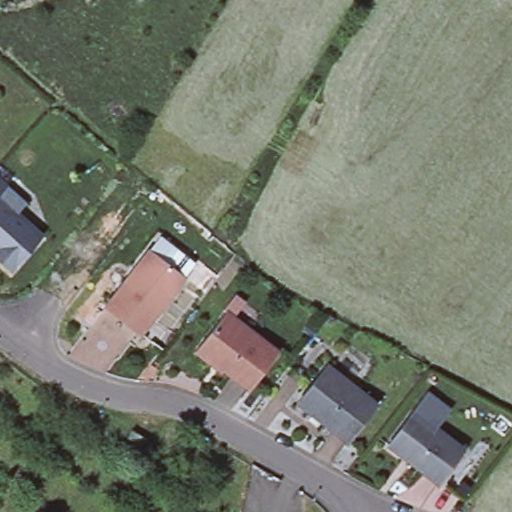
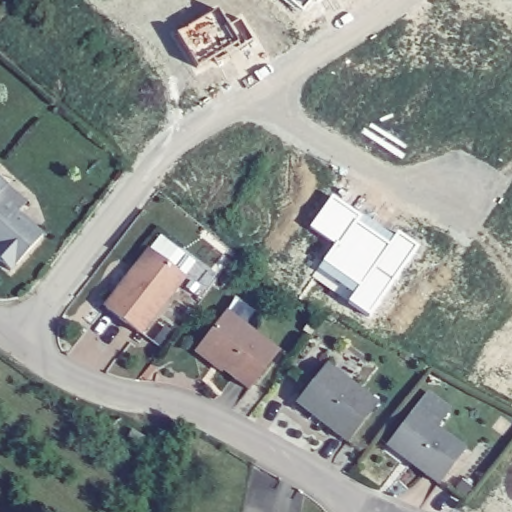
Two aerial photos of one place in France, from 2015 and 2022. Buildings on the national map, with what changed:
new [(290,0),(312,0),(302,11),(290,0)]
new [(232,27),(241,22),(253,40),(240,49),(237,45),(198,66),(180,32),(221,7),(232,27)]
unchanged [(6,185),(0,192),(0,179),(6,185)]
new [(361,214),(356,222),(391,243),(399,231),(419,245),(371,315),(350,302),(362,285),(324,260),(337,242),(312,225),(333,195),(361,214)]
unchanged [(17,212),(42,235),(10,271),(0,262),(0,197),(17,212)]
unchanged [(140,333),(105,306),(127,277),(135,267),(148,250),(152,254),(183,277),(140,333)]
unchanged [(195,351),(198,347),(226,312),(277,351),(248,389),(223,369),(221,371),(195,351)]
unchanged [(326,365),(376,404),(347,441),(297,402),(326,365)]
unchanged [(413,411),(427,390),(451,408),(436,428),(464,450),(438,483),(387,445),(413,411)]
unchanged [(131,429),(146,438),(142,446),(126,437),(131,429)]

